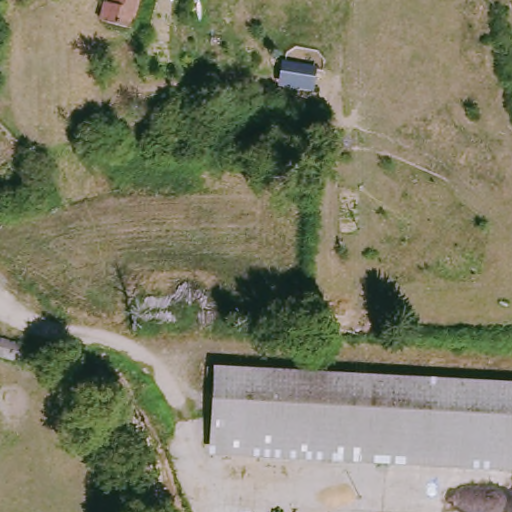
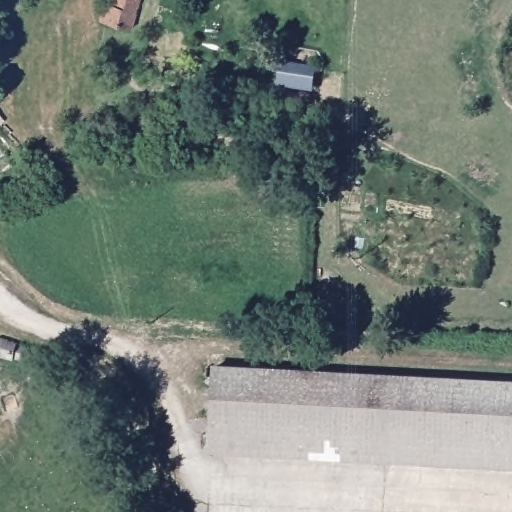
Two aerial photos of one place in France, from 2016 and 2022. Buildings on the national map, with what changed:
unchanged [(111,0),(145,0),(138,23),(113,19),(107,17),(111,0)]
unchanged [(15,357),(13,361),(0,357),(0,336),(27,346),(24,359),(15,357)]
unchanged [(214,440),(220,374),(512,395),(512,463),(214,440)]

